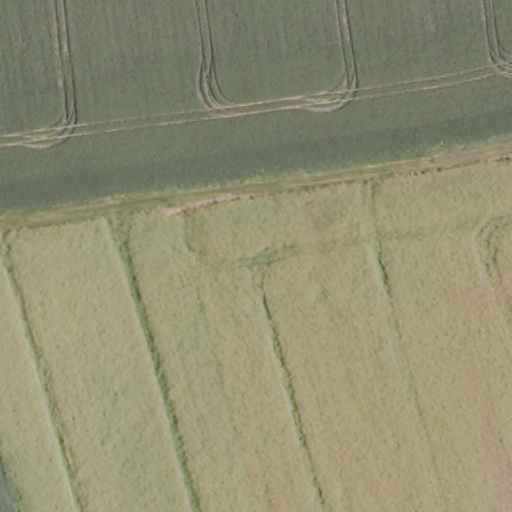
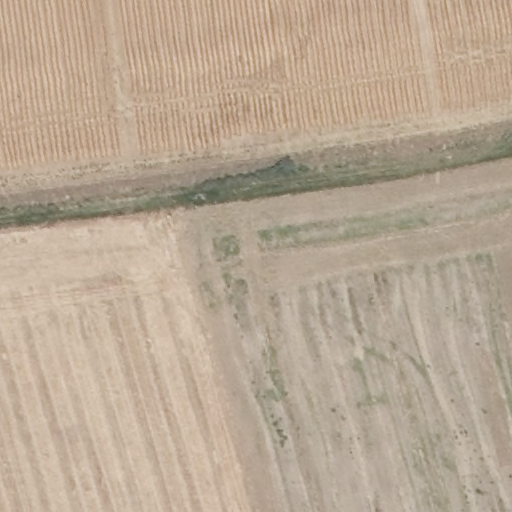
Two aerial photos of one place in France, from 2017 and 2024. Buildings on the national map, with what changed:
[]

